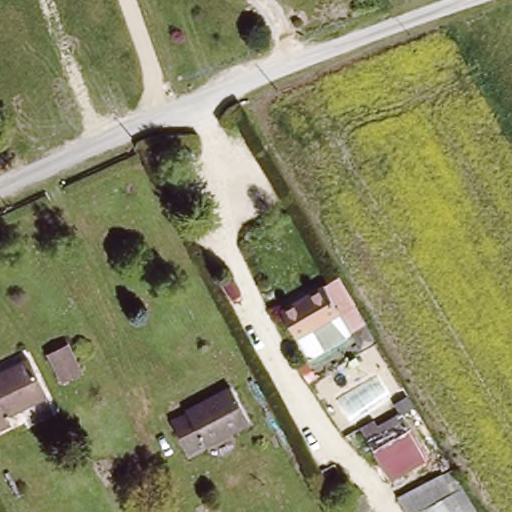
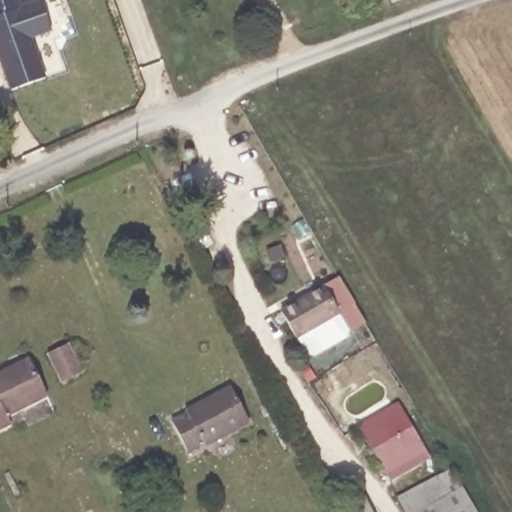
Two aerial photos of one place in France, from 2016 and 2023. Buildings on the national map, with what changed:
new [(21,0),(22,5),(40,1),(52,32),(32,39),(46,79),(11,91),(0,59),(0,0),(21,0)]
unchanged [(287,309),(331,285),(345,310),(302,334),(287,309)]
unchanged [(50,356),(69,347),(82,373),(64,382),(50,356)]
unchanged [(30,358),(49,395),(12,415),(15,422),(0,429),(0,374),(30,358)]
unchanged [(189,450),(174,418),(193,408),(192,406),(232,386),(250,420),(189,450)]
unchanged [(427,458),(389,481),(360,427),(374,420),(376,424),(402,410),(427,458)]
unchanged [(398,496),(453,467),(479,512),(406,512),(398,496)]
unchanged [(327,479),(344,471),(355,493),(362,490),(373,512),(343,512),(327,479)]

